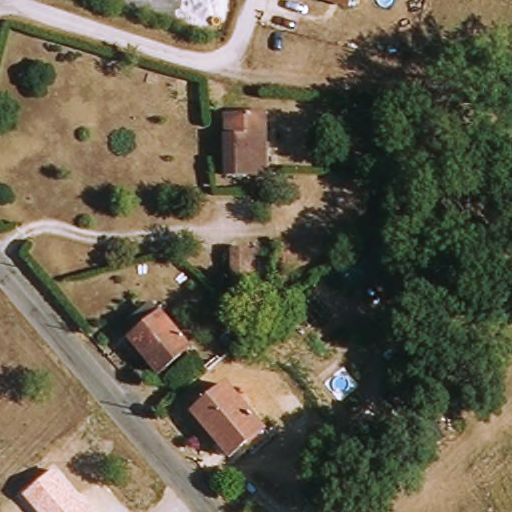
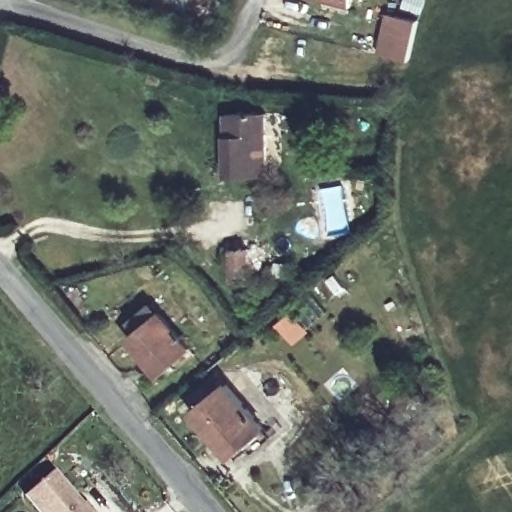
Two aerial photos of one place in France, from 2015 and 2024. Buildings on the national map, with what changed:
unchanged [(330,0),(353,0),(351,6),(330,0)]
new [(388,13),(420,19),(410,62),(377,54),(388,13)]
unchanged [(254,174),(235,173),(236,115),(255,116),(254,174)]
unchanged [(230,285),(230,250),(251,252),(250,285),(230,285)]
unchanged [(142,316),(133,306),(146,295),(190,346),(159,372),(124,333),(142,316)]
unchanged [(192,410),(223,383),(261,427),(231,454),(192,410)]
unchanged [(38,512),(24,494),(54,468),(91,512),(38,512)]

